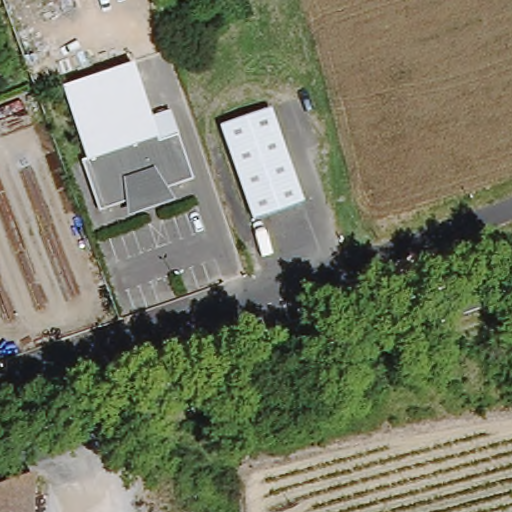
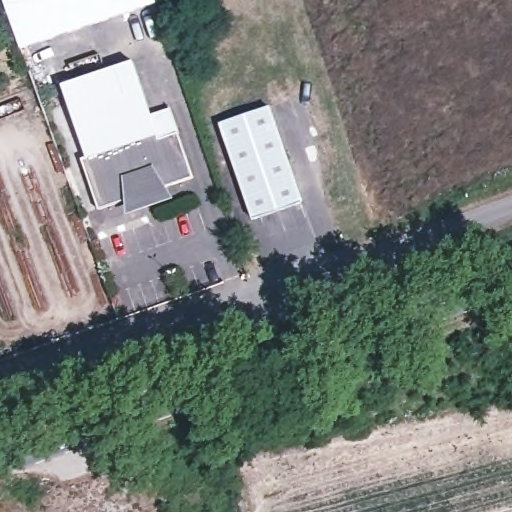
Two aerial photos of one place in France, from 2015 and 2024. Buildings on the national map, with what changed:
new [(20,49),(2,0),(156,0),(156,3),(20,49)]
unchanged [(134,59),(153,116),(172,107),(195,176),(167,185),(173,193),(128,208),(128,199),(102,207),(83,159),(86,152),(64,82),(134,59)]
unchanged [(256,224),(220,122),(270,105),(305,206),(256,224)]
demolished [(0,486),(28,477),(28,512),(0,512),(0,486)]

